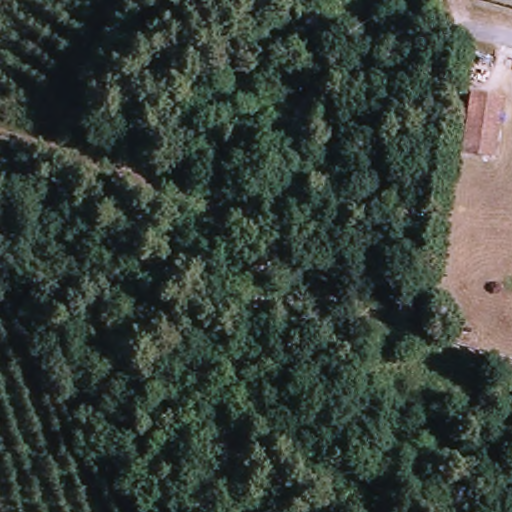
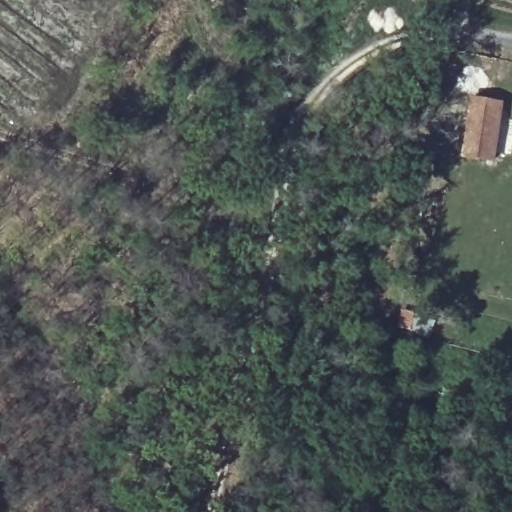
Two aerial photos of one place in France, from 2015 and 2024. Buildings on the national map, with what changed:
unchanged [(491,161),(464,155),(476,103),(502,108),(491,161)]

